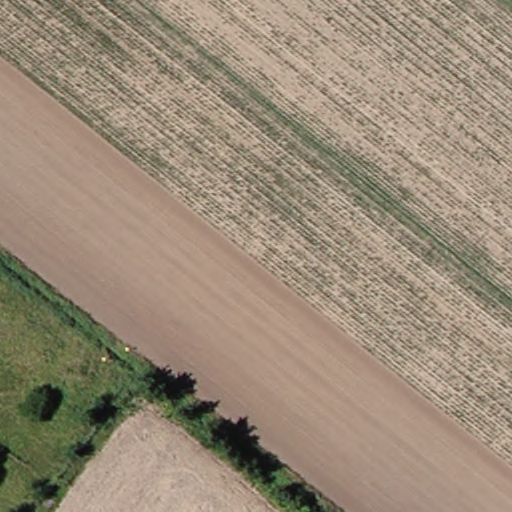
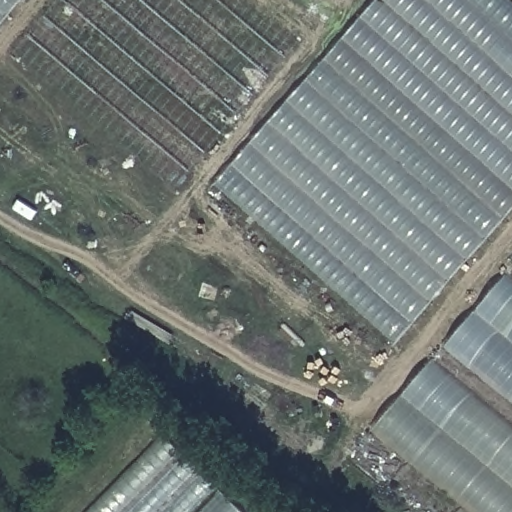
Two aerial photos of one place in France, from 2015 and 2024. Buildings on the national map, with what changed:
new [(23,0),(0,27),(0,0),(23,0)]
new [(377,0),(511,0),(512,1),(512,210),(398,342),(218,182),(377,0)]
new [(505,272),(512,278),(512,402),(445,347),(505,272)]
new [(512,424),(512,512),(474,512),(374,430),(435,360),(512,424)]
new [(165,434),(245,512),(88,512),(165,434)]

